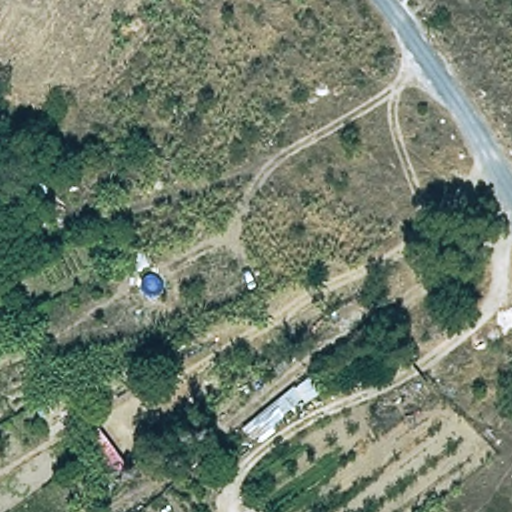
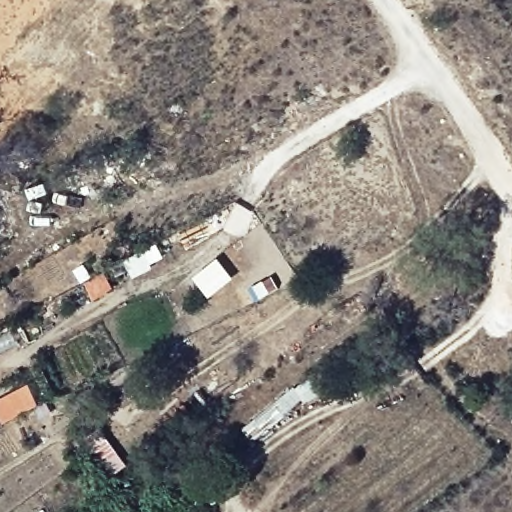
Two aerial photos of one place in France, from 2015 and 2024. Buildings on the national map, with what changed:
unchanged [(291,388),(310,377),(324,394),(299,407),(291,388)]
new [(38,404),(5,420),(0,412),(0,400),(28,385),(38,404)]
unchanged [(105,470),(80,442),(97,427),(122,459),(105,470)]

